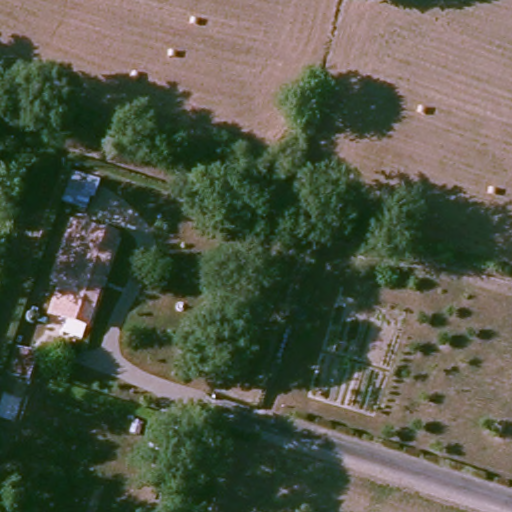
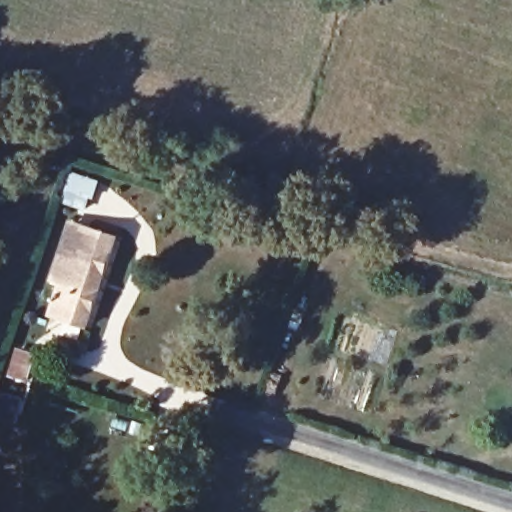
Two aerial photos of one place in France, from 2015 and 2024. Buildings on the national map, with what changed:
unchanged [(121,234),(93,324),(56,312),(66,282),(59,278),(79,220),(121,234)]
unchanged [(24,361),(18,359),(20,350),(25,335),(30,337),(42,340),(38,356),(36,364),(24,361)]

